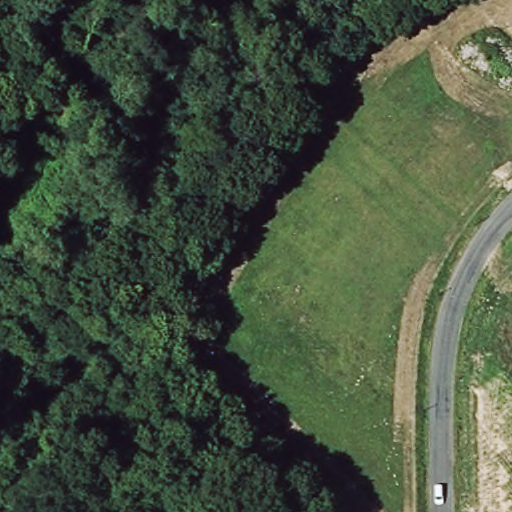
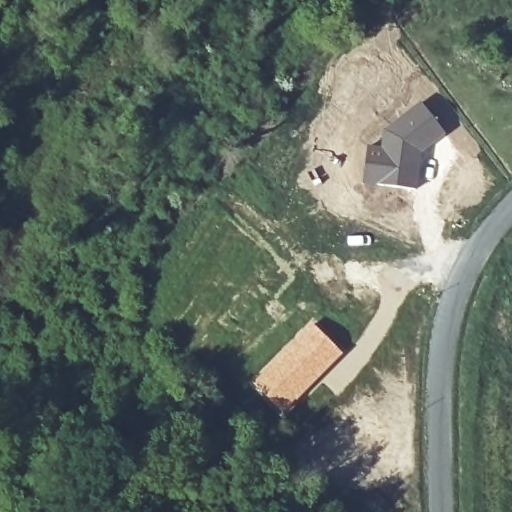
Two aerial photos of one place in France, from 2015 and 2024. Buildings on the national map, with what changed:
new [(366,144),(380,143),(380,131),(420,101),(447,134),(422,154),(418,190),(362,185),(366,144)]
new [(311,320),(343,353),(282,414),(250,381),(311,320)]

